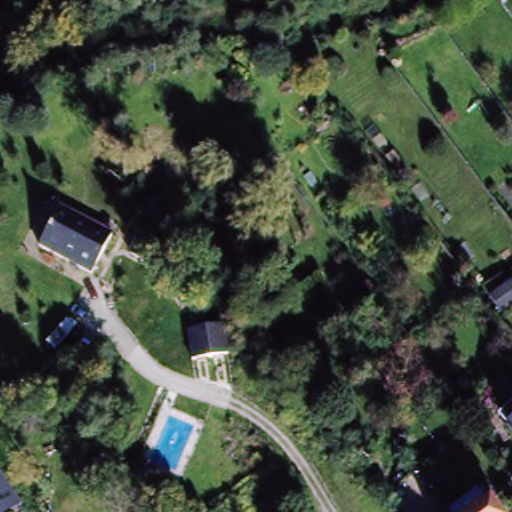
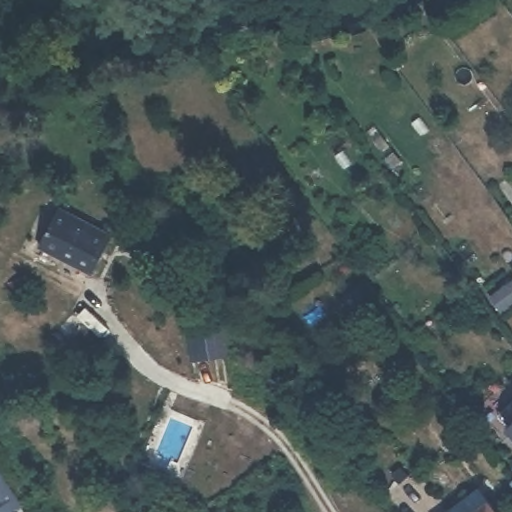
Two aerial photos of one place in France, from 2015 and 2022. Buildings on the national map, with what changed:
unchanged [(49,246),(103,269),(97,283),(29,253),(52,198),(66,204),(49,246)]
unchanged [(121,228),(103,269),(49,246),(66,204),(121,228)]
unchanged [(490,300),(512,282),(512,305),(500,314),(490,300)]
unchanged [(232,325),(238,355),(203,362),(197,332),(232,325)]
unchanged [(6,401),(2,398),(10,386),(15,389),(31,400),(23,412),(6,401)]
unchanged [(509,429),(512,426),(512,432),(509,429)]
unchanged [(0,512),(0,481),(18,512),(0,512)]
unchanged [(483,486),(492,499),(502,512),(455,512),(452,509),(483,486)]

